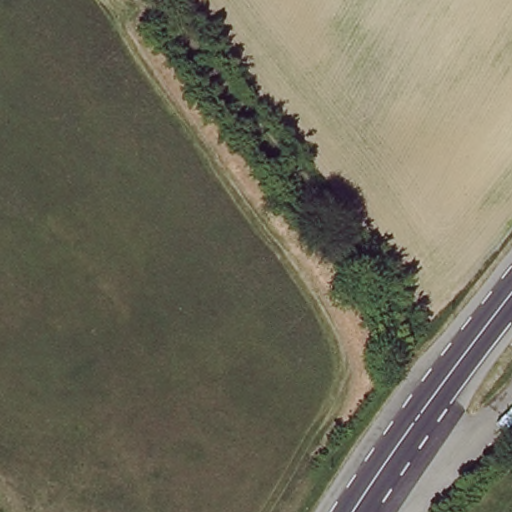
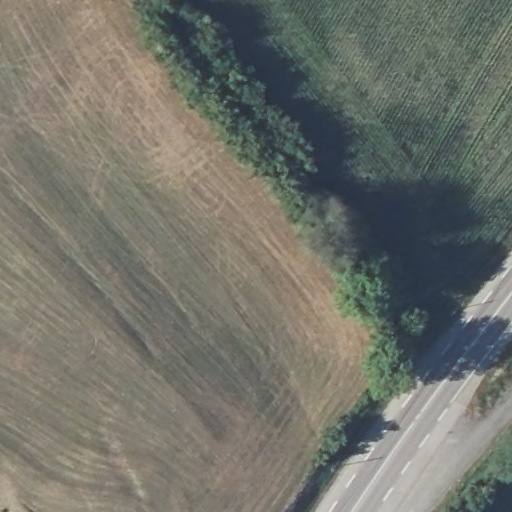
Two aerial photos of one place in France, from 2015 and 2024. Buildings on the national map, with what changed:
[]

